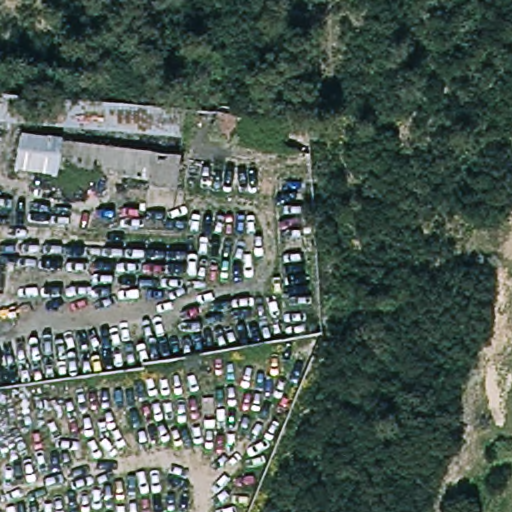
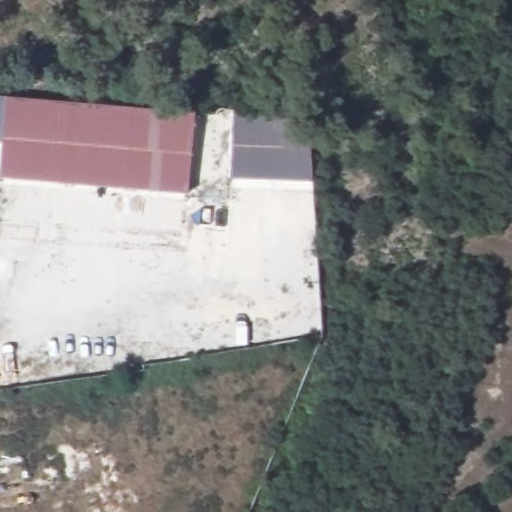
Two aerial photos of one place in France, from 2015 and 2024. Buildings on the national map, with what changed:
new [(1,125),(0,125),(0,96),(3,96),(1,125)]
new [(3,96),(195,111),(187,192),(0,178),(0,142),(0,125),(1,125),(3,96)]
new [(233,110),(308,113),(312,180),(230,178),(233,110)]
demolished [(273,124),(272,147),(208,141),(209,119),(273,124)]
demolished [(18,170),(20,144),(164,155),(162,182),(18,170)]

